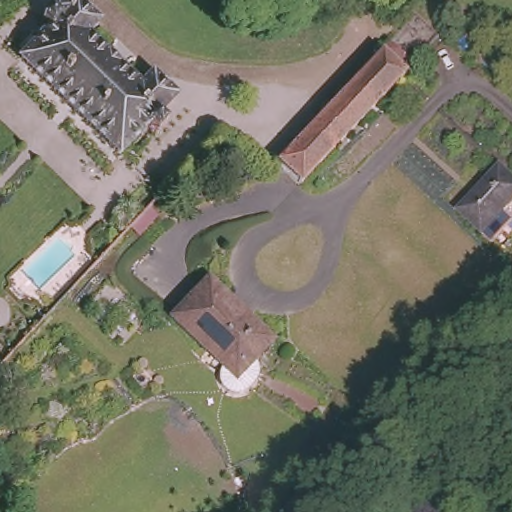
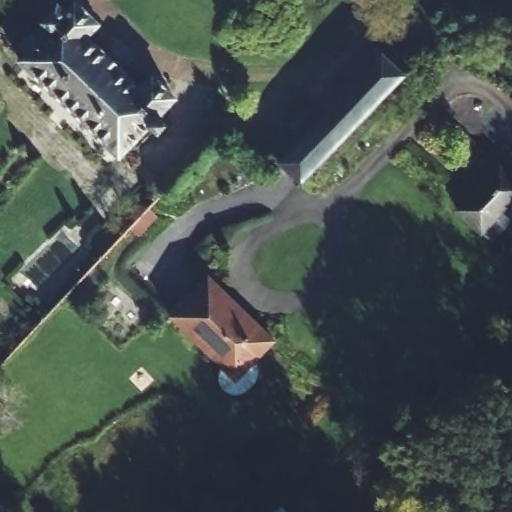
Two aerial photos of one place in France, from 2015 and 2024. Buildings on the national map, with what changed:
unchanged [(76,0),(82,0),(101,20),(90,31),(109,50),(121,39),(136,52),(125,65),(143,82),(155,71),(178,93),(161,111),(170,120),(161,129),(151,120),(122,151),(113,141),(100,129),(64,95),(24,56),(56,20),(48,12),(59,0),(66,0),(71,5),(76,0)]
unchanged [(497,45),(489,54),(471,36),(480,27),(497,45)]
unchanged [(320,117),(315,113),(375,51),(400,75),(384,91),(340,137),(320,117)]
unchanged [(506,70),(512,65),(512,76),(506,70)]
unchanged [(296,184),(275,165),(320,117),(340,137),(296,184)]
unchanged [(495,246),(480,232),(457,210),(488,175),(498,165),(512,178),(512,200),(493,219),(509,233),(495,246)]
unchanged [(229,370),(171,315),(210,275),(275,337),(257,356),(237,378),(229,370)]

